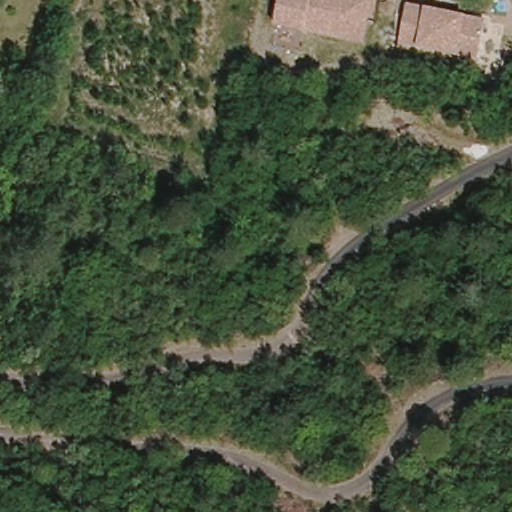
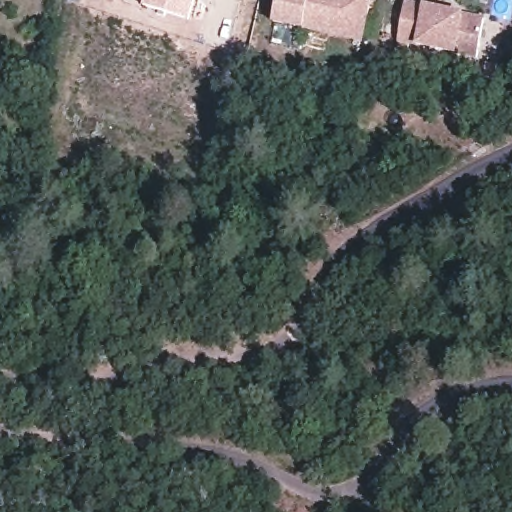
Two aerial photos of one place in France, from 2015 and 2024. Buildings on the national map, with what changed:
new [(142,0),(193,0),(187,20),(140,4),(142,0)]
unchanged [(366,36),(276,20),(282,0),(375,0),(366,36)]
unchanged [(490,17),(481,59),(399,42),(410,1),(490,17)]

